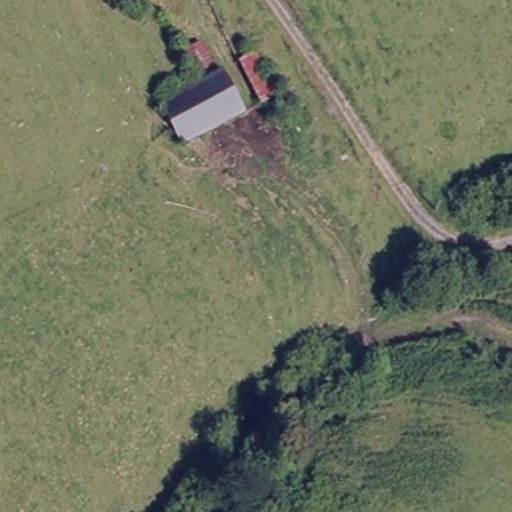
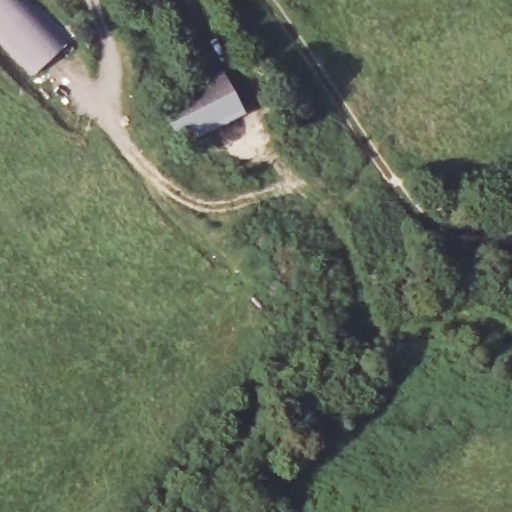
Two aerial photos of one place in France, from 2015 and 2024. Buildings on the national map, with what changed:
new [(25,0),(65,41),(29,77),(0,46),(0,0),(25,0)]
unchanged [(128,0),(137,0),(134,1),(131,4),(128,0)]
unchanged [(175,130),(158,100),(193,81),(206,75),(191,45),(208,35),(224,65),(231,62),(252,104),(180,142),(175,130)]
unchanged [(235,59),(254,49),(278,92),(260,101),(235,59)]

